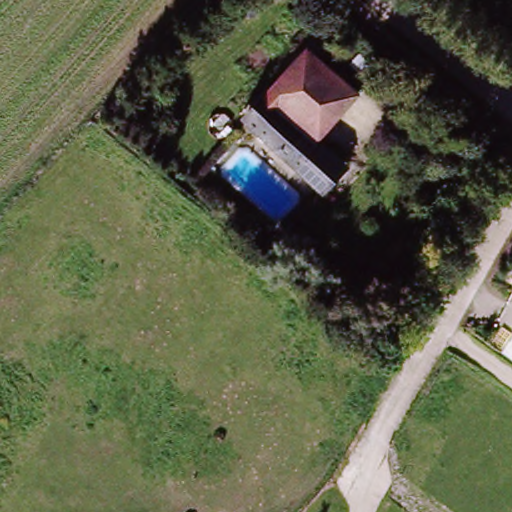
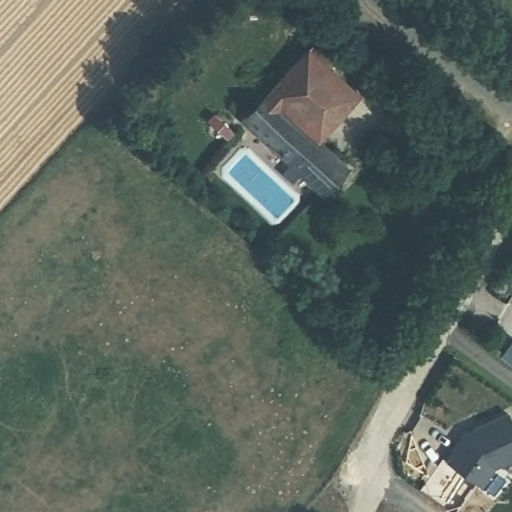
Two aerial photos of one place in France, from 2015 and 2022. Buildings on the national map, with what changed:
unchanged [(320,198),(314,191),(245,111),(315,46),(361,99),(317,139),(342,167),(347,173),(320,198)]
new [(512,363),(503,358),(512,344),(512,363)]
new [(512,459),(495,467),(482,486),(444,461),(464,432),(508,411),(512,420),(512,459)]

